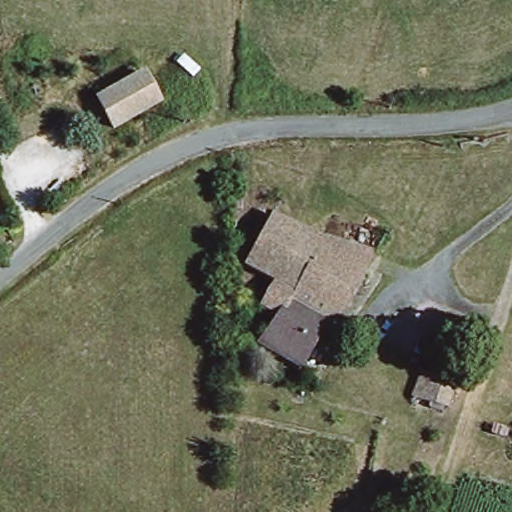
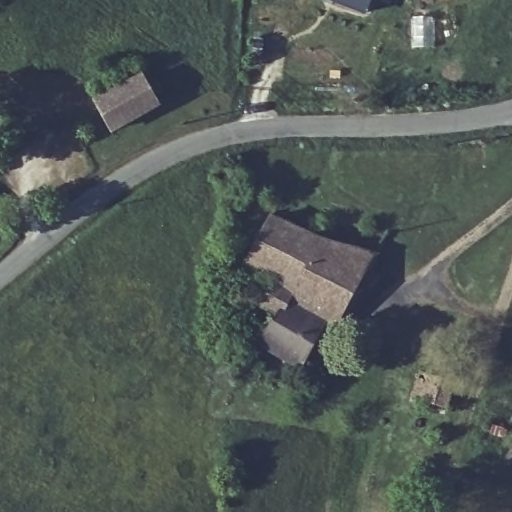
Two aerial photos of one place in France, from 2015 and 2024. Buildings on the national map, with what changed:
new [(331,0),(372,0),(367,14),(331,0)]
unchanged [(146,71),(164,104),(114,133),(96,98),(146,71)]
unchanged [(267,312),(254,305),(268,276),(242,264),(267,210),(368,251),(335,319),(322,313),(296,362),(253,339),(267,312)]
unchanged [(459,387),(451,412),(411,398),(419,373),(459,387)]

